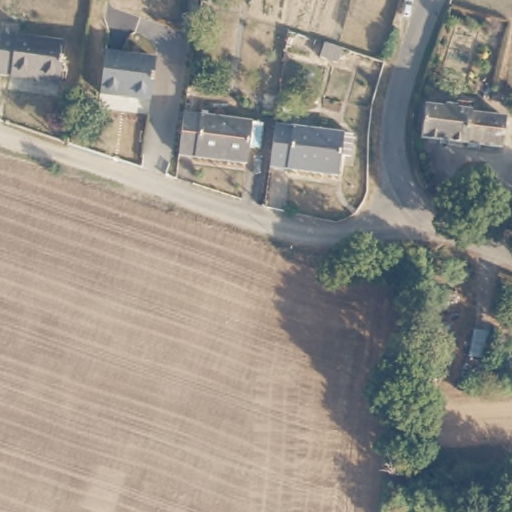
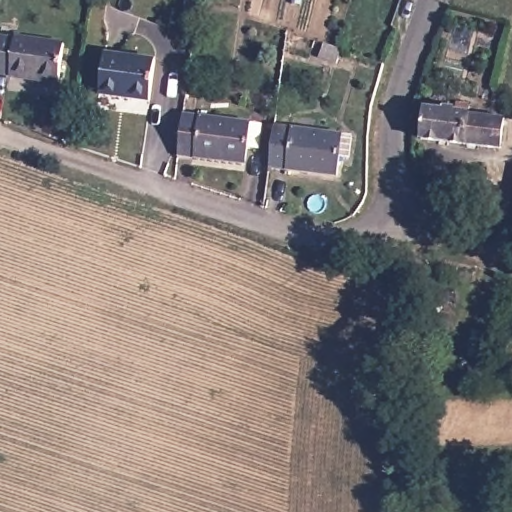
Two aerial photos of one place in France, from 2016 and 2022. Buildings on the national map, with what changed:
unchanged [(16,38),(65,43),(61,80),(9,75),(9,71),(0,71),(0,41),(16,42),(16,38)]
unchanged [(155,57),(150,97),(100,92),(102,54),(155,57)]
unchanged [(446,107),(447,102),(458,103),(457,109),(499,112),(497,143),(424,137),(424,107),(446,107)]
unchanged [(186,110),(264,121),(265,144),(252,142),(249,162),(182,153),(186,110)]
unchanged [(348,130),(345,152),(334,152),(332,172),(323,171),(266,166),(269,145),(270,122),(344,129),(348,130)]

